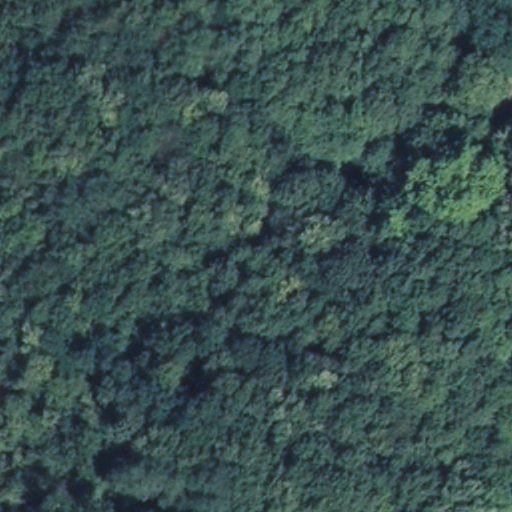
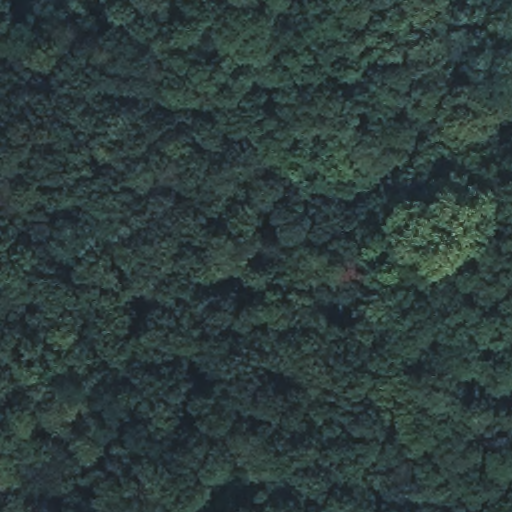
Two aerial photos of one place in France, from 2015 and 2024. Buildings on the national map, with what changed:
[]

